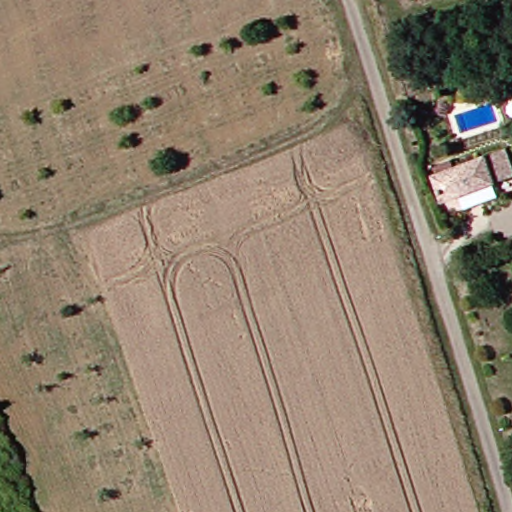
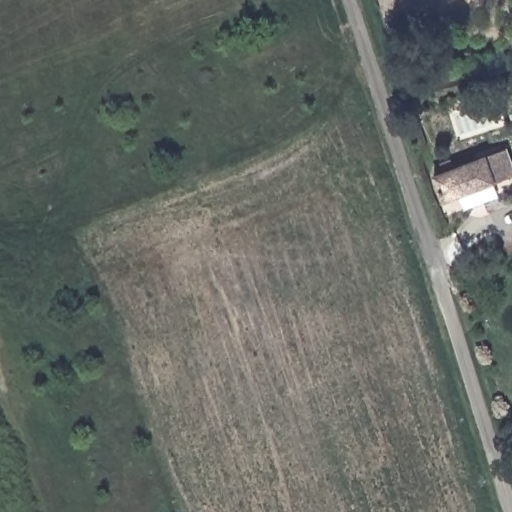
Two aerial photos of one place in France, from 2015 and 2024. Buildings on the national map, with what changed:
unchanged [(512,154),(512,176),(451,196),(443,174),(511,152),(512,154)]

